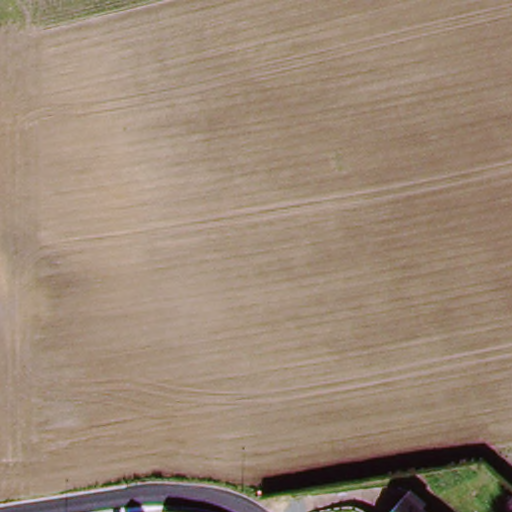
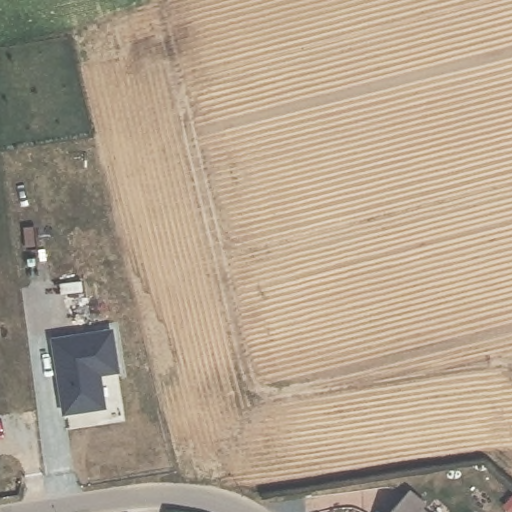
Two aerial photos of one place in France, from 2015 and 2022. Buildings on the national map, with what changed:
new [(114,328),(120,373),(101,375),(105,407),(63,413),(51,339),(114,328)]
unchanged [(407,490),(425,506),(420,511),(421,512),(387,512),(407,490)]

